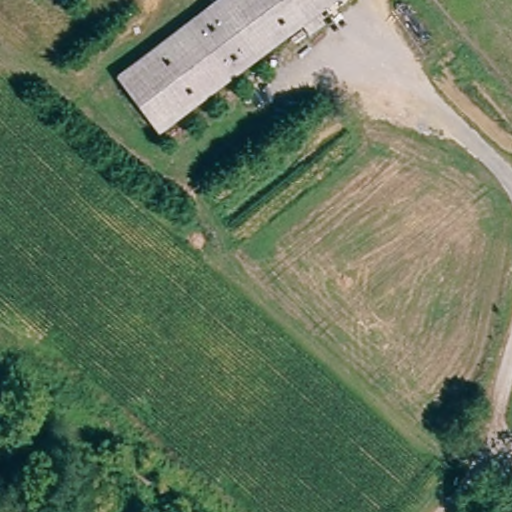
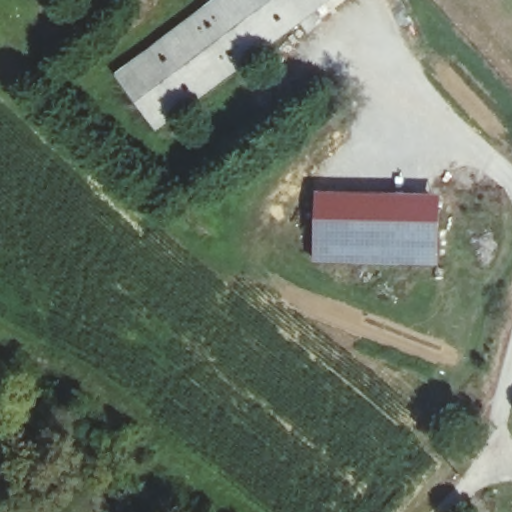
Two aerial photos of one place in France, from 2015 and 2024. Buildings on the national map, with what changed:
unchanged [(158,129),(118,74),(217,0),(332,0),(158,129)]
new [(314,262),(315,192),(441,194),(439,265),(314,262)]
unchanged [(119,512),(105,512),(108,506),(119,512)]

